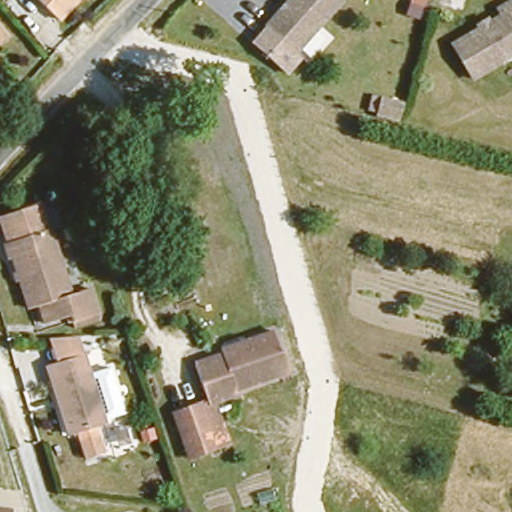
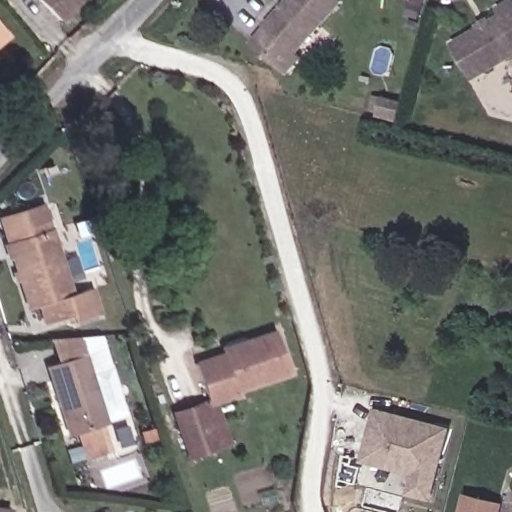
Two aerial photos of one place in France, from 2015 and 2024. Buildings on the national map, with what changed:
unchanged [(48,0),(70,0),(58,11),(48,0)]
unchanged [(293,54),(297,58),(283,74),(250,42),(289,0),(338,0),(341,2),(293,54)]
unchanged [(448,47),(497,19),(495,16),(511,5),(512,7),(512,60),(470,85),(448,47)]
unchanged [(9,31),(0,39),(0,21),(9,31)]
unchanged [(403,122),(380,116),(385,99),(407,105),(403,122)]
unchanged [(76,321),(74,314),(72,310),(44,317),(39,301),(27,303),(0,217),(0,215),(45,202),(51,222),(64,219),(75,252),(62,256),(71,287),(89,282),(96,307),(99,315),(76,321)]
unchanged [(293,366),(238,382),(240,390),(210,398),(197,356),(226,347),(225,343),(252,336),(282,327),(293,366)]
unchanged [(77,437),(72,422),(60,426),(40,362),(90,347),(109,410),(95,414),(100,431),(77,437)]
unchanged [(187,452),(174,409),(210,398),(225,442),(187,452)]
new [(406,495),(412,476),(361,463),(375,408),(451,427),(432,501),(406,495)]
new [(465,494),(503,503),(502,512),(460,512),(465,494)]
unchanged [(9,508),(9,512),(0,512),(0,507),(9,508)]

